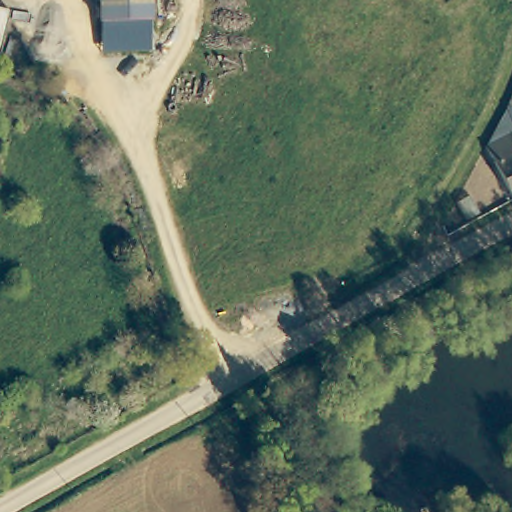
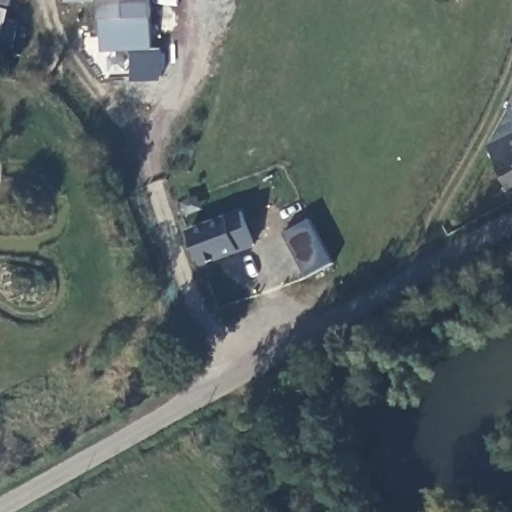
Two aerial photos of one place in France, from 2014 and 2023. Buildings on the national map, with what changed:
unchanged [(100,0),(150,0),(151,20),(101,22),(100,0)]
unchanged [(0,46),(0,7),(10,9),(0,46)]
unchanged [(152,50),(102,52),(101,22),(151,20),(152,50)]
unchanged [(505,117),(512,101),(512,120),(505,117)]
unchanged [(508,187),(487,150),(490,144),(512,134),(512,186),(508,187)]
new [(240,211),(254,246),(201,266),(187,230),(240,211)]
new [(310,220),(331,263),(305,276),(284,234),(310,220)]

